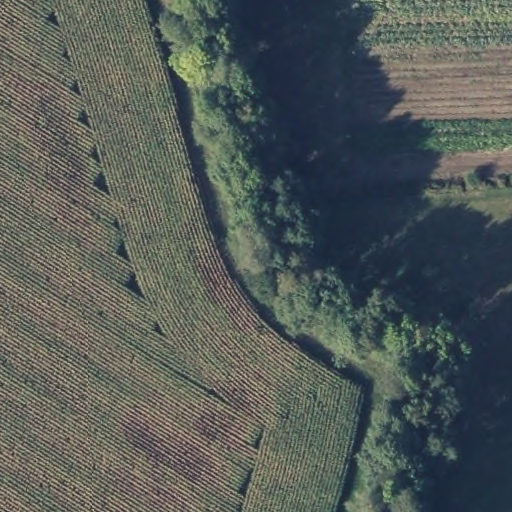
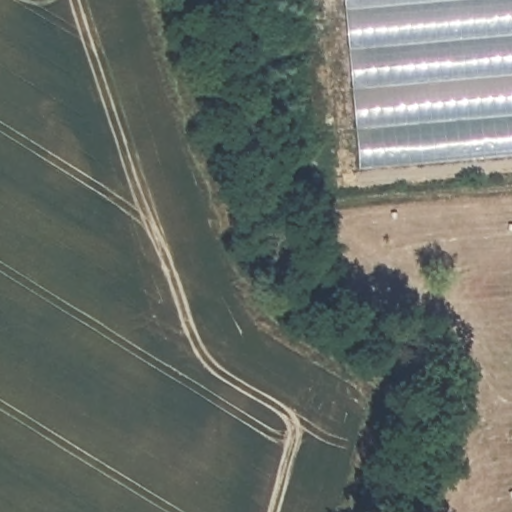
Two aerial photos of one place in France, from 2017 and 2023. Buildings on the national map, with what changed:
new [(344,0),(512,0),(512,154),(359,167),(344,0)]

